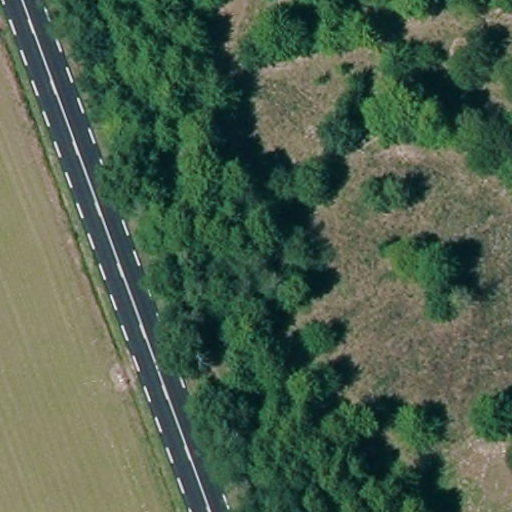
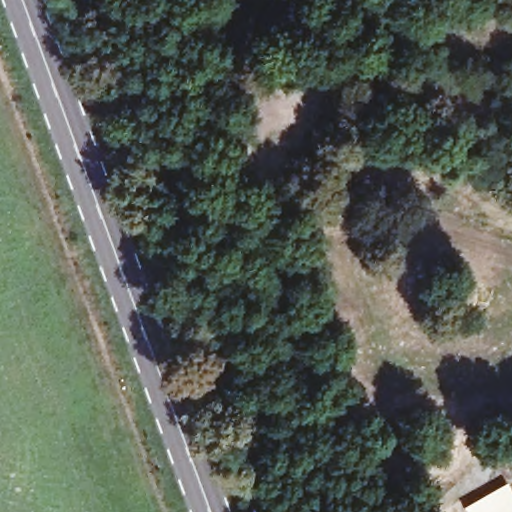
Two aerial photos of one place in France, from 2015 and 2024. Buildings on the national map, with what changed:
new [(512,491),(512,512),(465,512),(463,508),(507,482),(512,491)]

